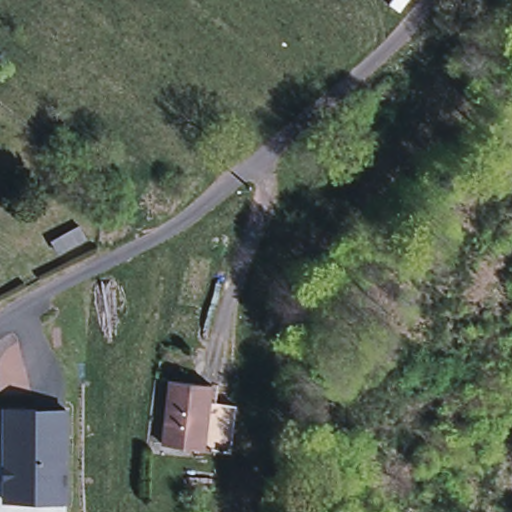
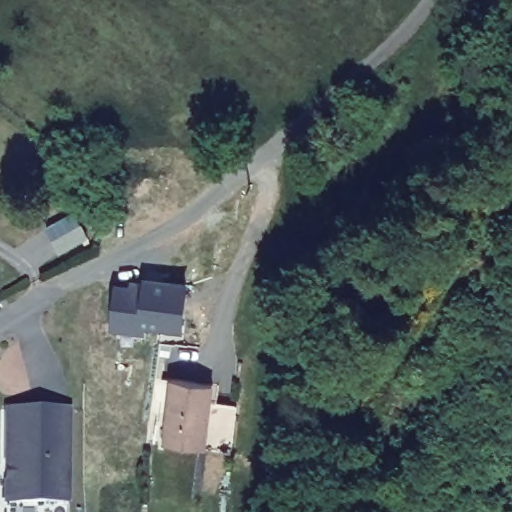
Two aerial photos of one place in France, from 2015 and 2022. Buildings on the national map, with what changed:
unchanged [(90,238),(58,256),(48,240),(80,221),(90,238)]
new [(130,291),(130,283),(143,285),(143,283),(186,287),(180,335),(142,330),(142,337),(109,334),(112,288),(130,291)]
unchanged [(163,448),(170,385),(212,390),(210,406),(205,453),(163,448)]
unchanged [(236,410),(230,456),(205,453),(210,406),(236,410)]
unchanged [(68,410),(67,502),(5,502),(5,409),(68,410)]

